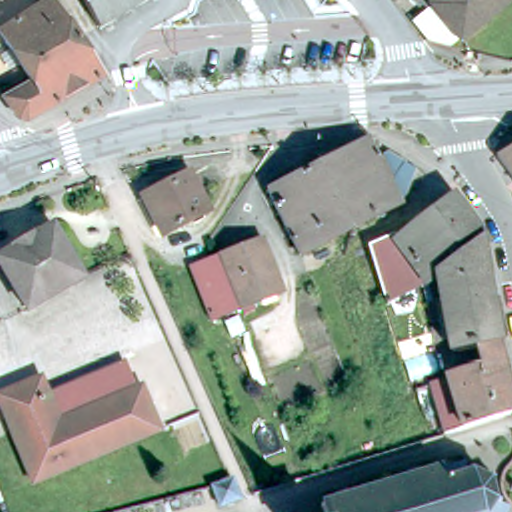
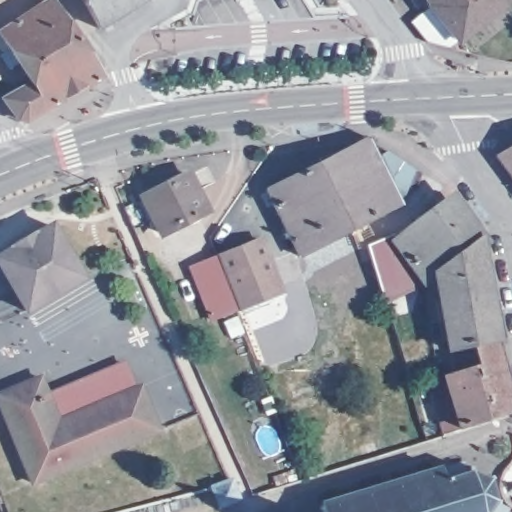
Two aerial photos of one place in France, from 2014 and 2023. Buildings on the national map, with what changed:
unchanged [(104,26),(100,28),(84,0),(146,0),(104,26)]
unchanged [(450,47),(427,41),(412,21),(432,5),(428,0),(508,0),(450,47)]
unchanged [(104,77),(27,122),(21,121),(6,99),(34,82),(2,33),(52,1),(104,77)]
unchanged [(269,189),(371,138),(402,202),(354,227),(322,243),(302,254),(269,189)]
unchanged [(499,155),(512,147),(512,175),(510,172),(499,155)]
unchanged [(185,175),(203,211),(160,232),(147,208),(151,206),(146,194),(185,175)]
unchanged [(385,301),(369,250),(408,234),(433,216),(453,201),(489,250),(507,343),(450,355),(442,318),(428,320),(424,288),(386,305),(385,301)]
unchanged [(35,232),(37,234),(53,225),(84,276),(27,310),(0,264),(0,257),(12,249),(11,247),(35,232)]
unchanged [(262,240),(280,282),(284,292),(241,309),(225,269),(220,257),(262,240)]
unchanged [(225,269),(241,309),(210,322),(192,269),(220,257),(225,269)]
unchanged [(124,362),(136,392),(55,426),(42,396),(124,362)]
unchanged [(505,416),(445,434),(430,384),(500,363),(512,401),(512,413),(505,416)]
unchanged [(0,399),(36,383),(42,396),(55,426),(136,392),(137,391),(155,434),(30,486),(0,413),(0,399)]
unchanged [(473,474),(487,480),(493,474),(496,478),(489,483),(494,499),(501,500),(501,505),(512,508),(510,512),(324,512),(321,503),(442,468),(440,460),(464,453),(472,464),(473,474)]
unchanged [(230,478),(237,499),(215,506),(209,485),(230,478)]

